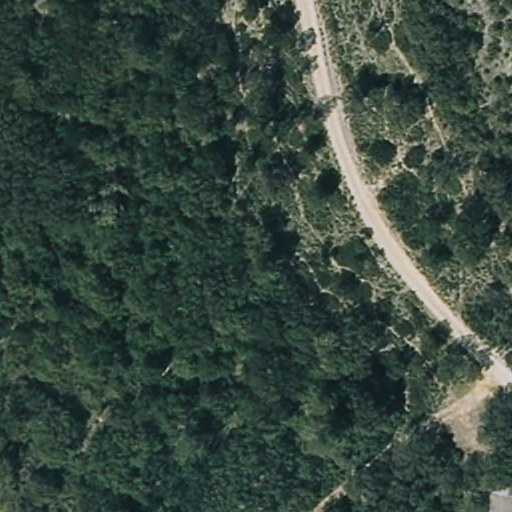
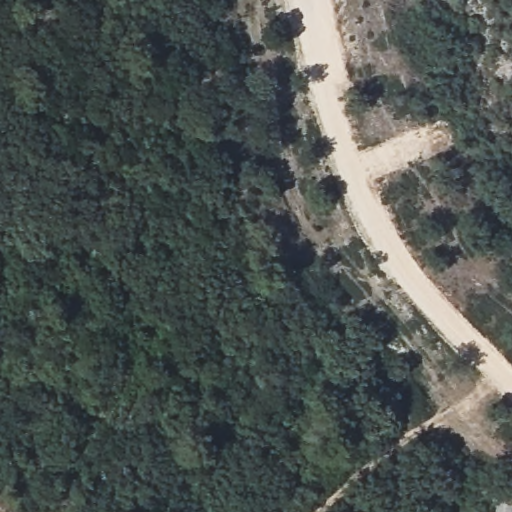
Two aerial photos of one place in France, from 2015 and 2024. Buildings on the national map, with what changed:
unchanged [(494,488),(512,492),(512,512),(487,512),(494,488)]

